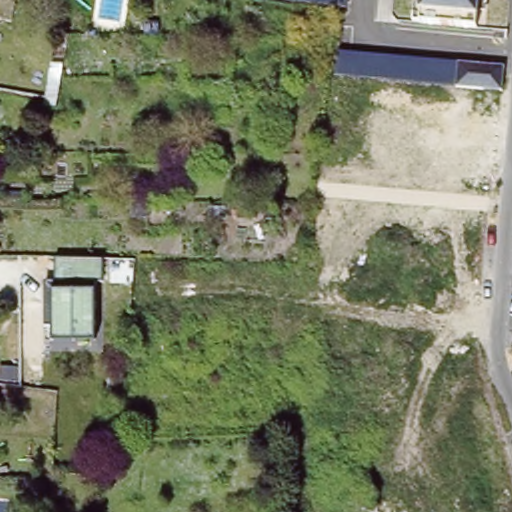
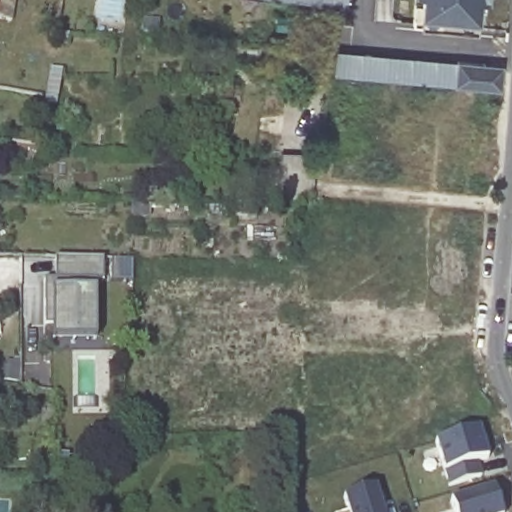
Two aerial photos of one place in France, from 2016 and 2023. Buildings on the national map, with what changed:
unchanged [(0,17),(0,0),(4,0),(1,17),(0,17)]
unchanged [(272,0),(349,0),(350,10),(272,0)]
unchanged [(420,24),(421,0),(482,0),(480,29),(420,24)]
unchanged [(503,89),(335,74),(336,52),(505,65),(503,89)]
unchanged [(104,255),(105,279),(95,279),(95,289),(96,343),(52,344),(52,330),(45,330),(43,280),(55,280),(53,259),(104,255)]
new [(474,461),(480,476),(448,485),(443,470),(435,441),(479,427),(487,458),(474,461)]
new [(348,509),(345,497),(376,487),(384,512),(341,512),(348,509)]
new [(450,500),(493,487),(500,512),(453,512),(450,500)]

